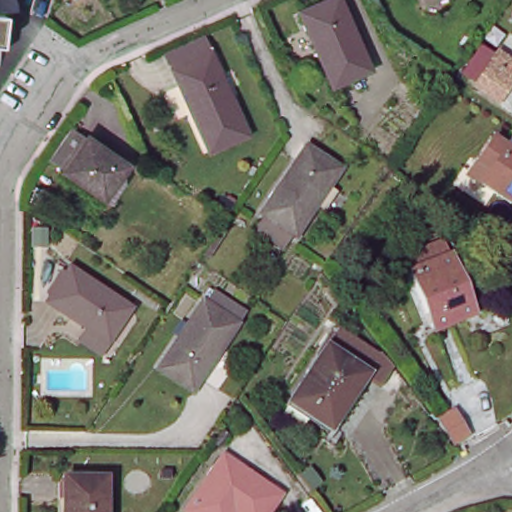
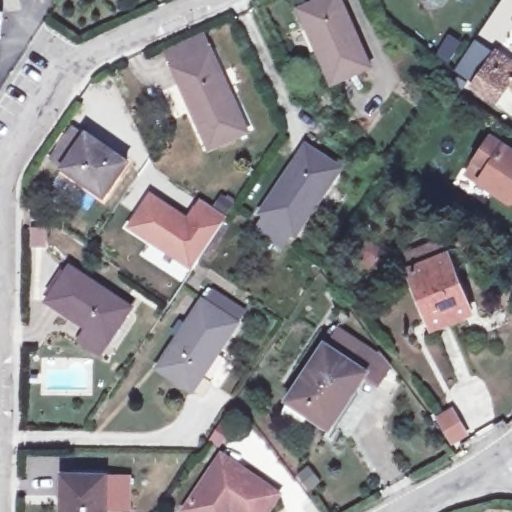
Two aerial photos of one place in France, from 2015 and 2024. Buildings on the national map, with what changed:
unchanged [(333,85),(304,10),(329,0),(343,0),(369,70),(333,85)]
unchanged [(0,35),(0,14),(2,14),(0,35)]
unchanged [(207,147),(175,66),(167,49),(206,32),(214,50),(247,131),(207,147)]
unchanged [(512,62),(512,113),(472,85),(499,52),(512,62)]
unchanged [(124,158),(100,191),(59,164),(84,130),(124,158)]
unchanged [(512,153),(512,196),(508,201),(477,181),(465,173),(474,161),(490,137),(512,153)]
unchanged [(263,215),(308,149),(342,172),(298,238),(295,236),(287,249),(261,231),(270,219),(263,215)]
new [(129,227),(152,194),(189,218),(202,201),(227,219),(192,270),(129,227)]
new [(46,247),(32,245),(34,225),(49,228),(46,247)]
unchanged [(469,302),(428,318),(406,263),(447,247),(469,302)]
unchanged [(109,347),(47,304),(71,270),(132,312),(109,347)]
unchanged [(196,392),(160,368),(205,301),(242,326),(196,392)]
unchanged [(342,421),(296,391),(300,385),(332,337),(372,364),(360,380),(366,385),(342,421)]
unchanged [(187,510),(224,455),(277,492),(264,512),(190,512),(187,510)]
unchanged [(104,512),(62,512),(63,482),(105,483),(104,512)]

